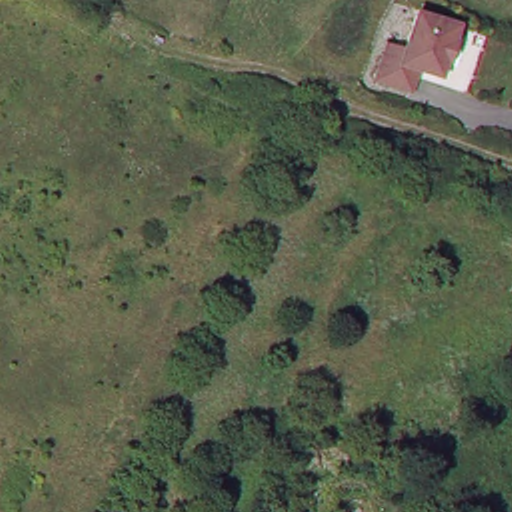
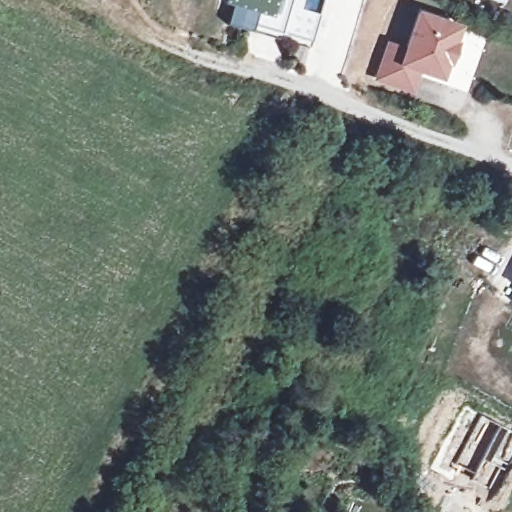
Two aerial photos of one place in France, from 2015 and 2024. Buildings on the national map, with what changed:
new [(313,43),(283,34),(229,19),(232,6),(225,4),(227,0),(293,0),(290,8),(321,17),(313,43)]
unchanged [(448,43),(452,44),(444,64),(442,64),(436,79),(403,67),(402,74),(413,77),(408,92),(375,82),(387,46),(402,52),(416,15),(453,28),(448,43)]

